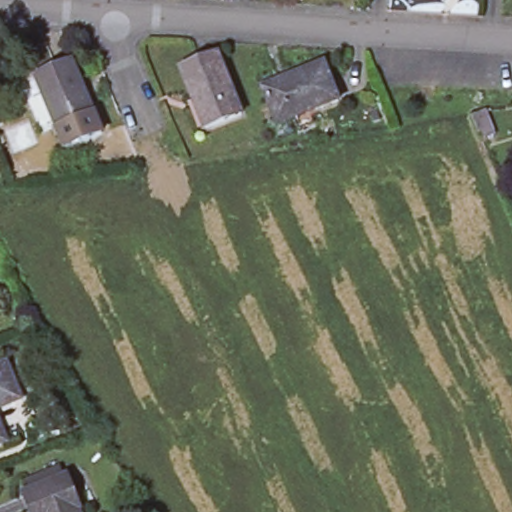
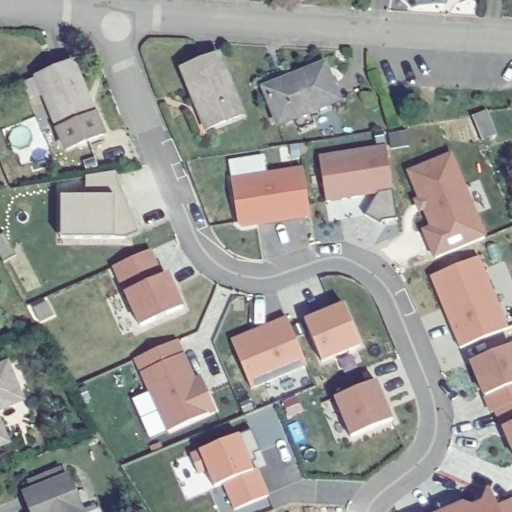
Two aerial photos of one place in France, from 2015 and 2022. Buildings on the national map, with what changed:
unchanged [(32,63),(69,49),(89,100),(97,121),(60,135),(52,114),(32,63)]
unchanged [(241,116),(205,130),(180,70),(217,56),(241,116)]
unchanged [(339,105),(283,124),(270,85),(326,66),(339,105)]
new [(386,146),(397,219),(382,222),(378,229),(362,220),(377,194),(326,202),(319,157),(386,146)]
new [(488,238),(435,262),(420,229),(428,226),(422,211),(417,213),(412,200),(416,198),(405,170),(452,150),(488,238)]
new [(303,169),(310,216),(242,226),(238,223),(231,181),(303,169)]
new [(163,273),(168,273),(185,308),(139,328),(124,293),(111,266),(151,249),(163,273)]
new [(508,327),(460,348),(430,276),(480,257),(508,327)]
new [(332,310),(343,305),(361,347),(322,363),(305,322),(321,315),(332,310)]
new [(271,325),(286,318),(307,366),(251,389),(231,341),(253,332),(271,325)]
new [(195,381),(201,378),(207,391),(216,411),(168,432),(135,359),(176,341),(195,381)]
new [(502,427),(494,411),(490,412),(486,396),(483,398),(469,362),(512,345),(512,452),(502,427)]
unchanged [(0,403),(0,365),(13,398),(0,403)]
new [(389,395),(394,407),(398,419),(357,436),(340,397),(382,379),(389,395)]
unchanged [(36,512),(29,491),(71,476),(84,512),(36,512)]

